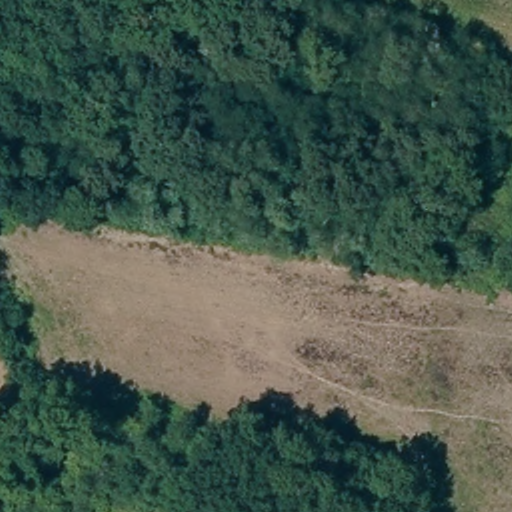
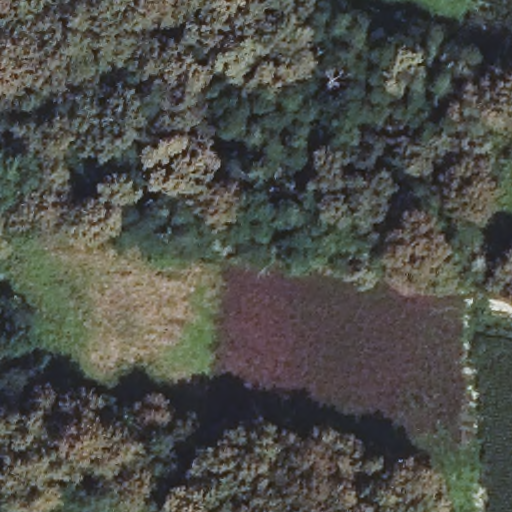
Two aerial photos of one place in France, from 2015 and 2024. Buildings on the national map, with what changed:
[]

